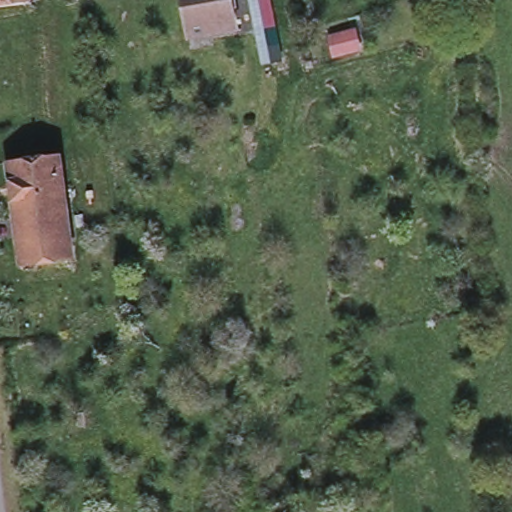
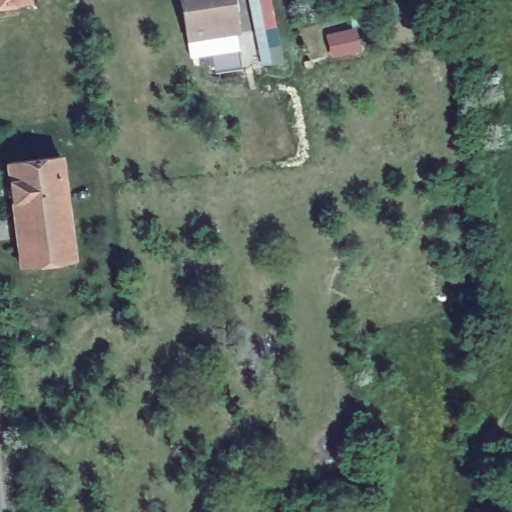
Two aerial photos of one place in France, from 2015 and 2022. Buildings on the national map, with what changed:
unchanged [(0,7),(0,0),(31,0),(31,3),(0,7)]
unchanged [(185,39),(179,0),(229,0),(233,30),(185,39)]
unchanged [(260,64),(248,0),(271,0),(282,60),(260,64)]
unchanged [(350,28),(355,49),(332,54),(327,34),(350,28)]
unchanged [(10,163),(60,156),(68,213),(16,221),(10,163)]
unchanged [(68,213),(74,261),(22,268),(16,221),(68,213)]

